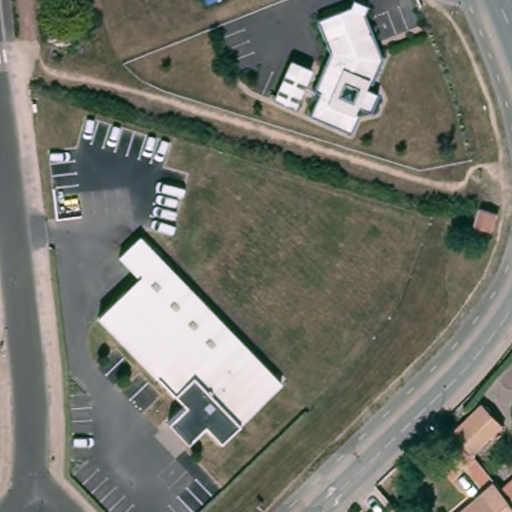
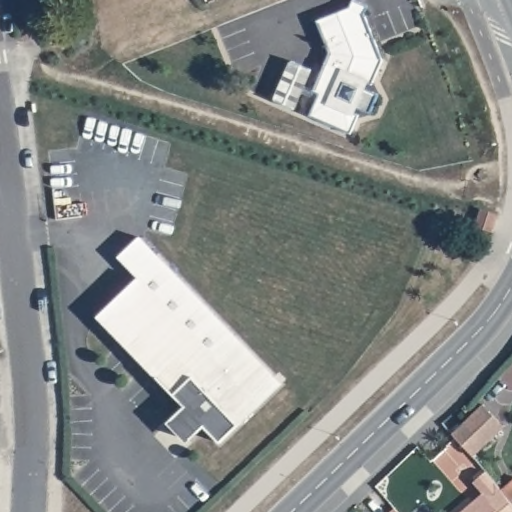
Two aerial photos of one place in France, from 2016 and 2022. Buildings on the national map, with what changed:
unchanged [(351,0),(354,0),(367,6),(363,13),(381,59),(370,84),(364,82),(362,88),(377,94),(370,113),(354,107),(351,112),(357,114),(349,133),(308,115),(317,94),(311,91),(328,52),(315,20),(348,7),(351,0)]
unchanged [(290,55),(310,64),(292,104),(273,95),(290,55)]
unchanged [(137,283),(117,262),(137,242),(278,386),(214,448),(199,432),(186,448),(166,428),(181,412),(95,322),(137,283)]
unchanged [(493,482),(512,504),(512,512),(460,512),(493,482)]
unchanged [(396,512),(390,512),(393,509),(396,512)]

